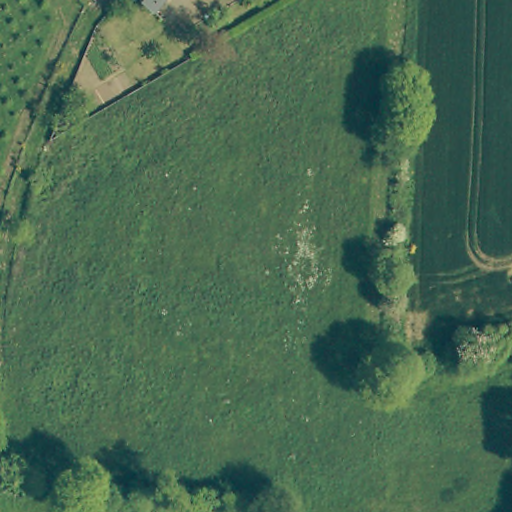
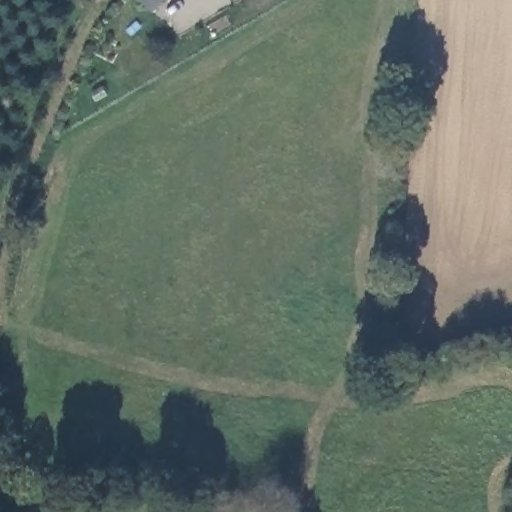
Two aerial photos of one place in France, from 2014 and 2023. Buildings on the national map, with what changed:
unchanged [(144,6),(138,0),(152,0),(144,6)]

